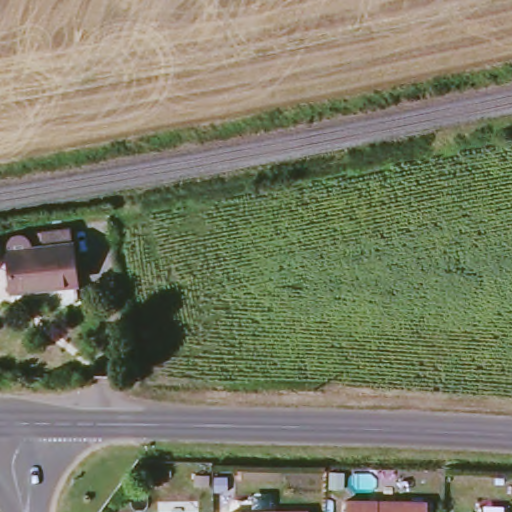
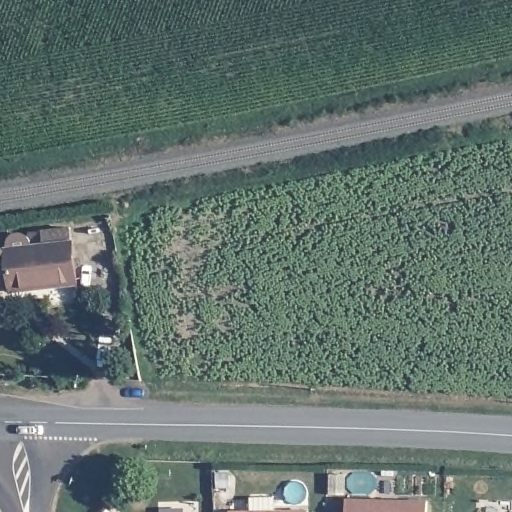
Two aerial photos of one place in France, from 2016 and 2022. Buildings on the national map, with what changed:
unchanged [(44,251),(45,235),(75,232),(76,248),(80,290),(16,295),(12,253),(44,251)]
unchanged [(2,255),(4,257),(5,261),(6,264),(6,268),(4,272),(3,275),(0,277),(0,254),(2,255)]
unchanged [(342,497),(425,501),(425,512),(341,512),(342,497)]
unchanged [(310,510),(311,512),(231,512),(231,510),(310,510)]

